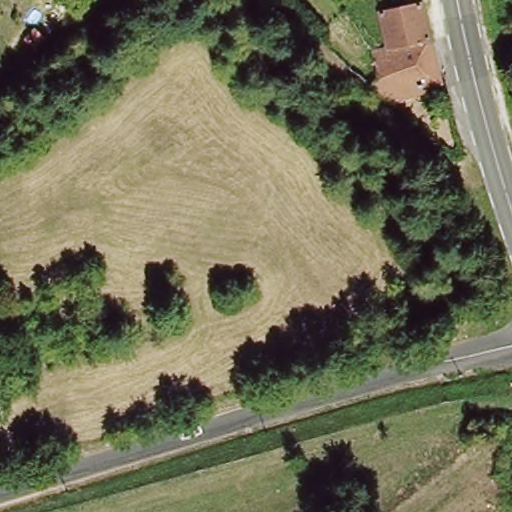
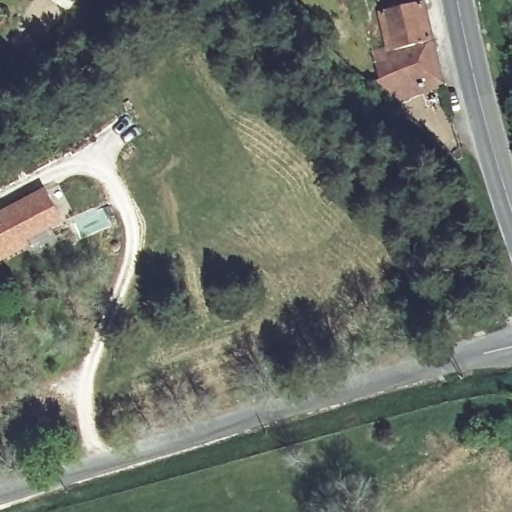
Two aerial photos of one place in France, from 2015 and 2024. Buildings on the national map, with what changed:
unchanged [(403,39),(392,10),(418,0),(434,0),(440,33),(404,44),(403,39)]
unchanged [(403,39),(404,44),(440,33),(456,87),(401,95),(367,65),(387,57),(380,46),(403,39)]
new [(0,256),(0,214),(39,193),(54,220),(57,226),(21,245),(0,256)]

